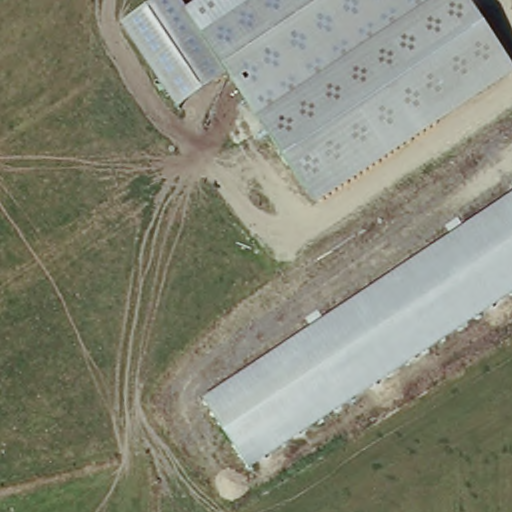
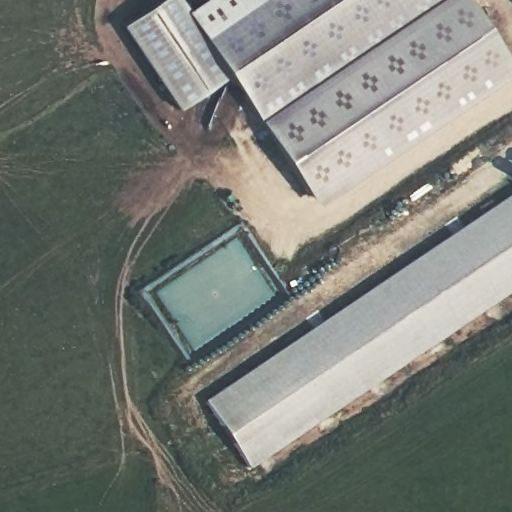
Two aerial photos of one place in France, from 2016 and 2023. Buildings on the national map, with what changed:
unchanged [(176,0),(203,41),(263,0),(457,0),(259,134),(224,84),(176,115),(119,32),(166,0),(176,0)]
unchanged [(185,14),(207,0),(263,0),(203,41),(185,14)]
unchanged [(317,205),(267,129),(457,0),(472,0),(512,61),(512,72),(317,205)]
unchanged [(205,400),(512,195),(512,294),(248,469),(205,400)]

